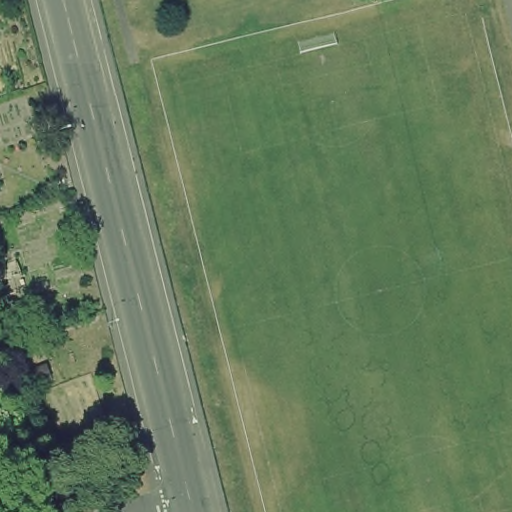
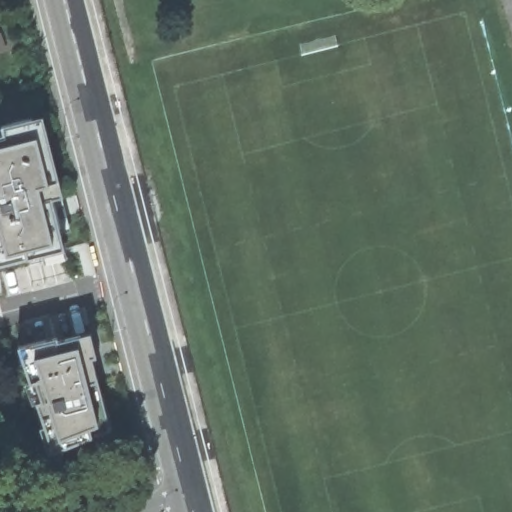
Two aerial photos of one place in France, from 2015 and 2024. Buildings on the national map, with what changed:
new [(1,125),(32,118),(36,134),(46,132),(71,230),(60,234),(64,249),(0,265),(0,134),(3,134),(1,125)]
new [(85,305),(89,323),(84,324),(80,307),(85,305)]
new [(57,335),(58,340),(91,332),(99,363),(93,364),(94,368),(94,367),(110,429),(57,449),(48,453),(39,426),(32,403),(25,382),(29,381),(18,346),(57,335)]

